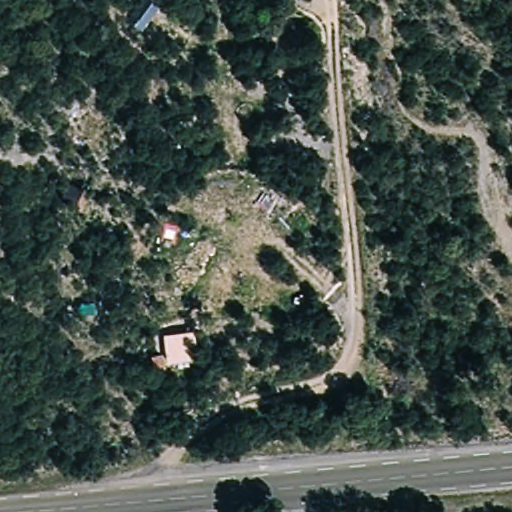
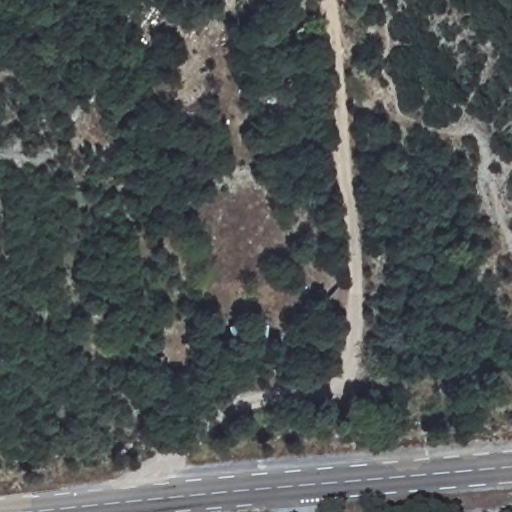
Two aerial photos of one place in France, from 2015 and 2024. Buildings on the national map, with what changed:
unchanged [(125,17),(138,0),(149,0),(159,8),(142,30),(125,17)]
unchanged [(163,335),(195,331),(199,358),(168,365),(154,372),(150,358),(166,353),(163,335)]

